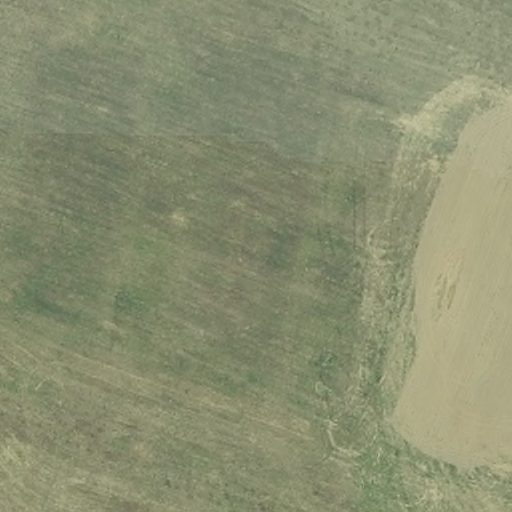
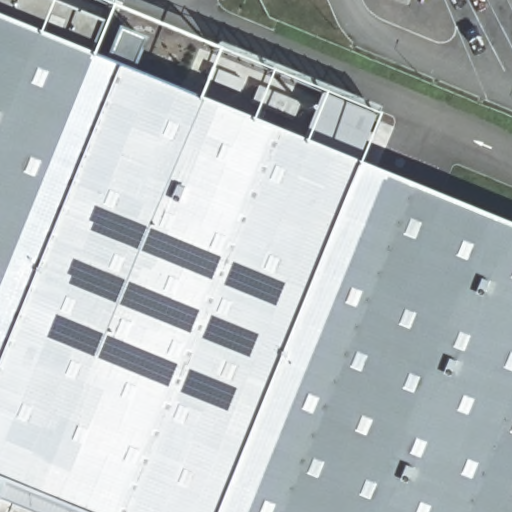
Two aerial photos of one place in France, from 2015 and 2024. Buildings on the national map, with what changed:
new [(512,225),(512,512),(123,512),(0,462),(0,18),(512,225)]

